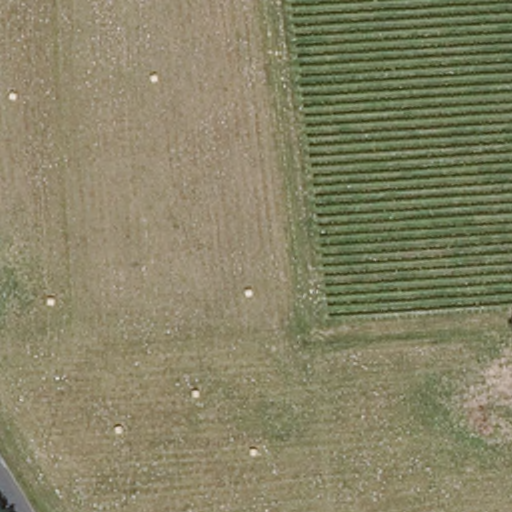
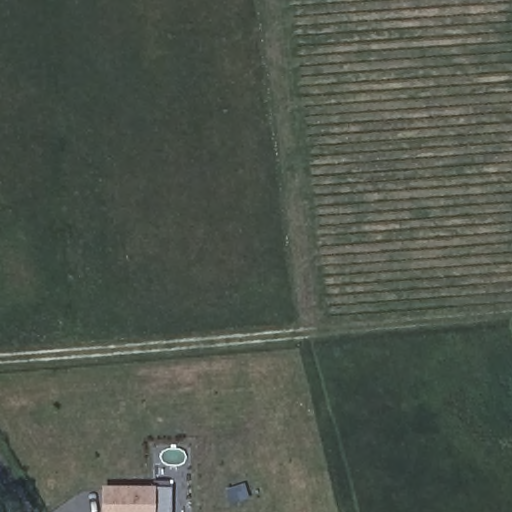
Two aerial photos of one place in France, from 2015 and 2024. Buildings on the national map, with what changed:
new [(103,487),(156,487),(157,512),(103,512),(103,487)]

